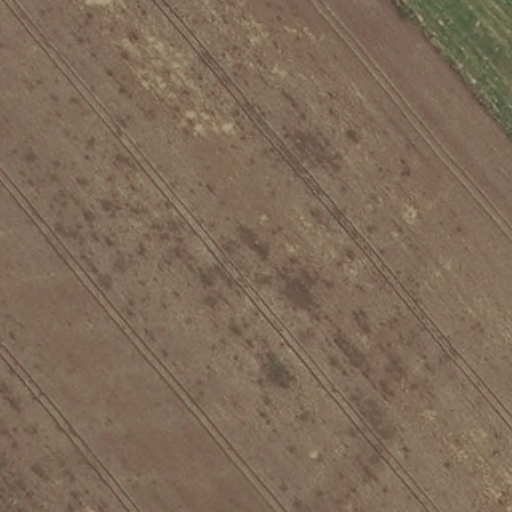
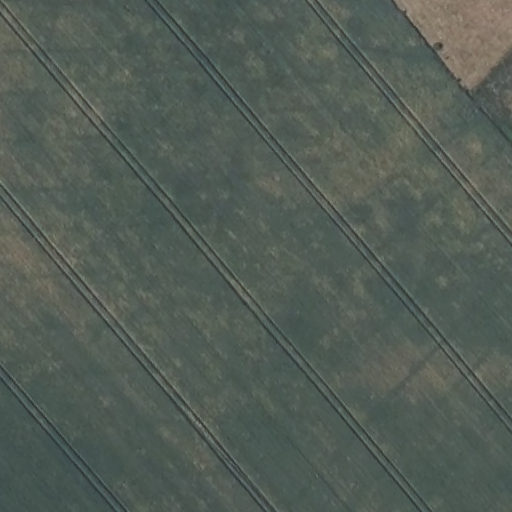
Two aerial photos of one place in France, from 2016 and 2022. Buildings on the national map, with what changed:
[]

